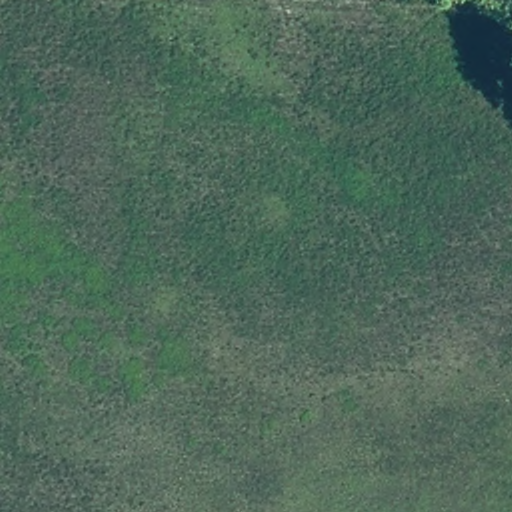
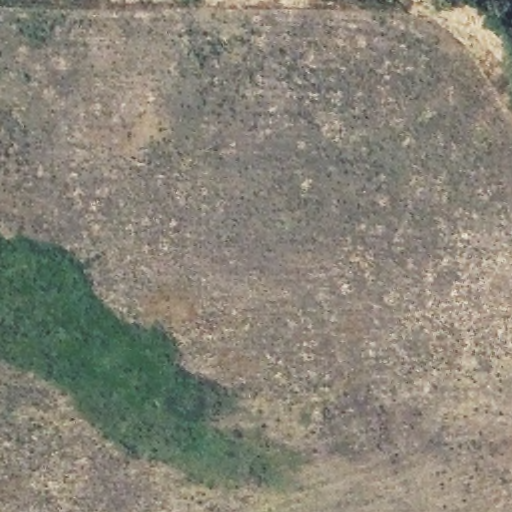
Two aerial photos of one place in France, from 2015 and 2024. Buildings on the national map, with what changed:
[]

